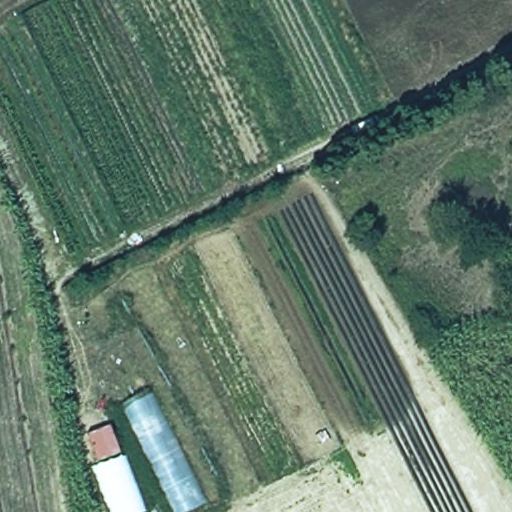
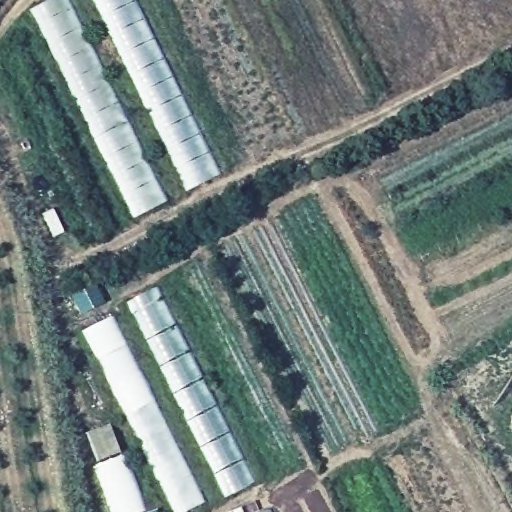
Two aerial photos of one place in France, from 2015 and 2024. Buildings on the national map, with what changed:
new [(47,0),(69,0),(169,200),(135,217),(31,8),(47,0)]
new [(188,190),(94,0),(135,0),(220,174),(188,190)]
new [(225,498),(127,302),(158,286),(256,482),(225,498)]
new [(120,408),(82,331),(114,314),(151,392),(120,408)]
unchanged [(151,392),(205,504),(189,512),(170,512),(120,408),(151,392)]
unchanged [(108,425),(118,456),(123,454),(145,512),(108,512),(90,465),(96,462),(85,433),(108,425)]
new [(268,512),(264,512),(267,511),(268,512)]

